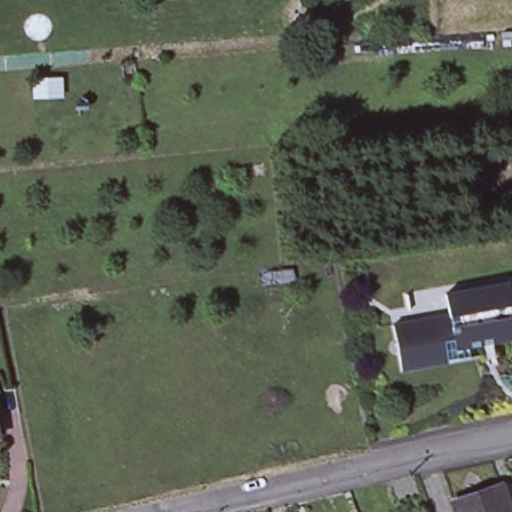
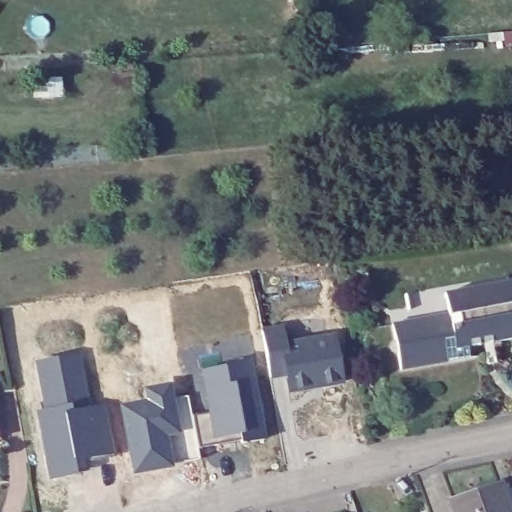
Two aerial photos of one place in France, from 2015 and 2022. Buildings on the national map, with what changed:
unchanged [(486,366),(482,348),(466,351),(468,362),(400,374),(396,359),(394,358),(391,357),(390,355),(388,352),(390,349),(391,347),(393,345),(391,329),(447,318),(443,298),(507,286),(511,309),(509,310),(510,320),(512,320),(512,343),(489,347),(492,365),(486,366)]
new [(287,324),(288,338),(338,332),(346,384),(290,392),(288,377),(270,379),(263,326),(287,324)]
new [(82,351),(92,405),(103,403),(114,457),(87,461),(88,472),(50,482),(37,411),(45,409),(36,362),(82,351)]
new [(230,365),(230,382),(235,383),(245,441),(200,445),(195,417),(210,412),(205,370),(230,365)]
new [(149,400),(146,388),(175,384),(176,400),(191,398),(195,417),(200,445),(202,460),(135,474),(121,404),(149,400)]
unchanged [(509,512),(456,512),(452,501),(500,484),(509,512)]

